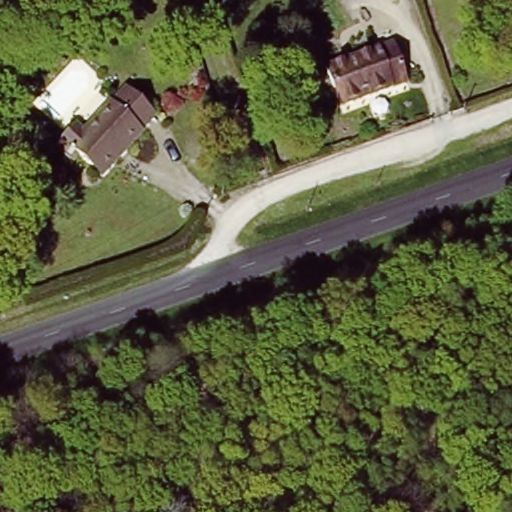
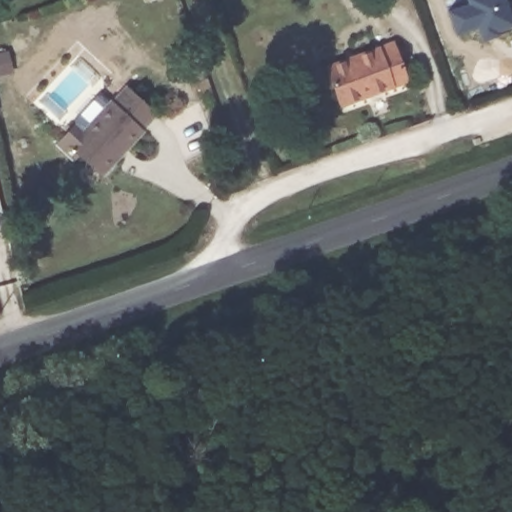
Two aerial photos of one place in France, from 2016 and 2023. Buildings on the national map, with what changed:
new [(512,1),(512,29),(496,34),(481,38),(477,25),(454,31),(447,11),(469,3),(468,0),(504,0),(505,2),(512,1)]
unchanged [(397,40),(410,80),(345,104),(332,65),(397,40)]
unchanged [(156,114),(144,127),(145,129),(104,175),(82,155),(77,160),(60,145),(80,125),(87,131),(128,89),(156,114)]

